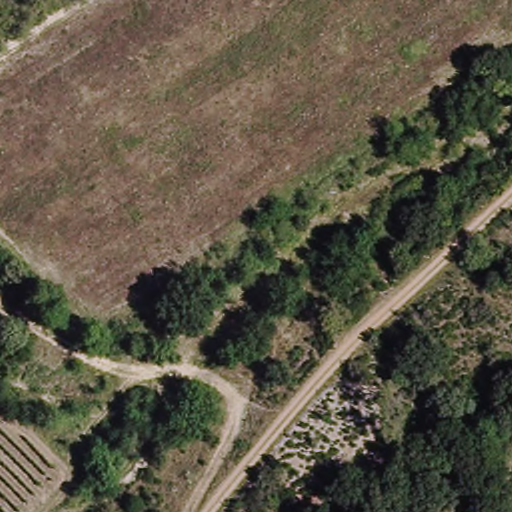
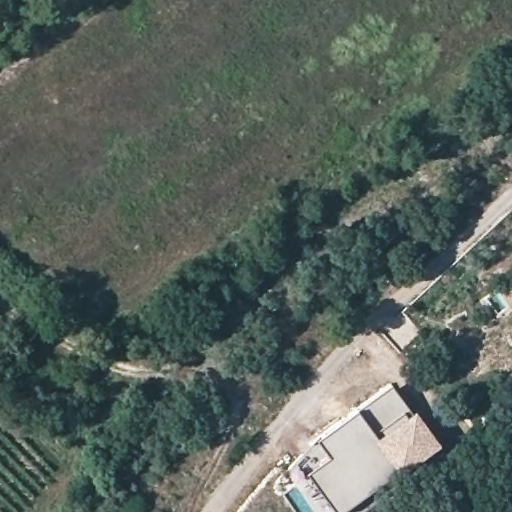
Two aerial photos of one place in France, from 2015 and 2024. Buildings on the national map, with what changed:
new [(411,412),(414,411),(440,446),(400,476),(397,472),(342,512),(315,512),(286,471),(316,438),(356,410),(390,385),(411,412)]

